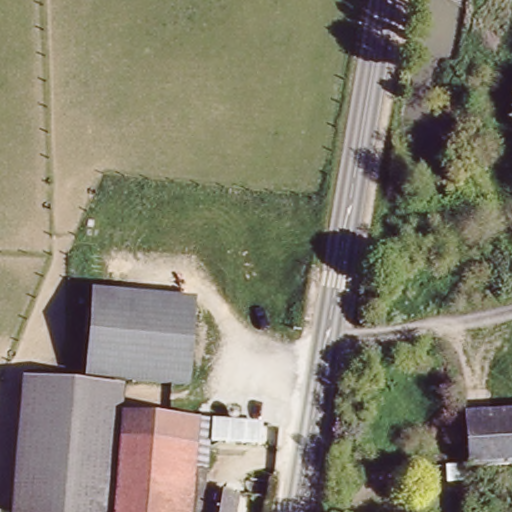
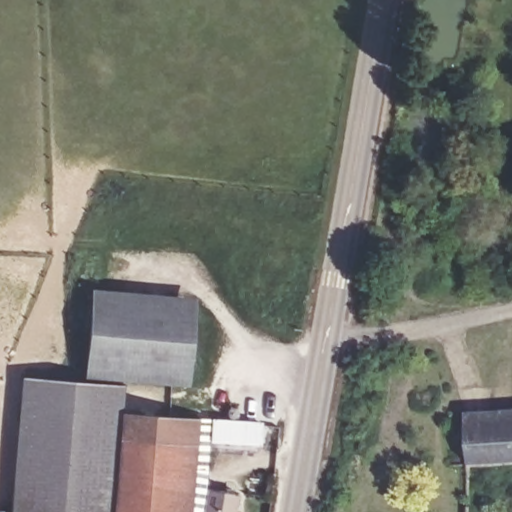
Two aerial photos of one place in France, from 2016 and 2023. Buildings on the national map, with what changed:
unchanged [(93,288),(196,297),(188,384),(86,376),(93,288)]
unchanged [(127,383),(125,411),(117,512),(18,512),(29,375),(127,383)]
unchanged [(200,416),(212,417),(207,473),(197,472),(193,512),(117,512),(125,411),(200,416)]
unchanged [(475,463),(471,415),(512,412),(512,461),(475,463)]
unchanged [(216,417),(264,421),(262,444),(214,439),(216,417)]
unchanged [(237,489),(236,512),(204,512),(206,487),(237,489)]

